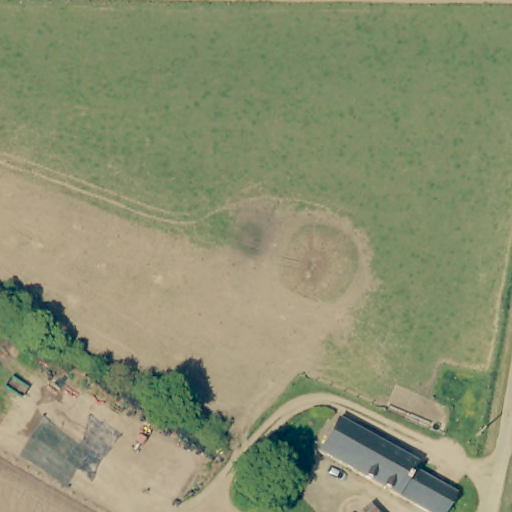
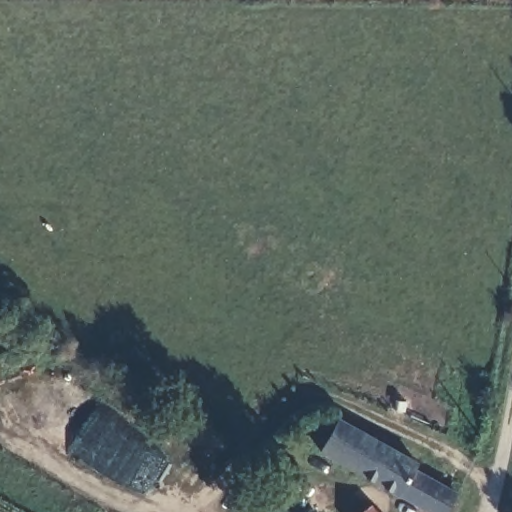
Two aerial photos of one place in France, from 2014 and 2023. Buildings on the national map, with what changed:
unchanged [(373,441),(415,464),(411,471),(454,495),(445,512),(426,512),(319,452),(336,421),(373,441)]
unchanged [(374,512),(362,512),(368,506),(374,512)]

